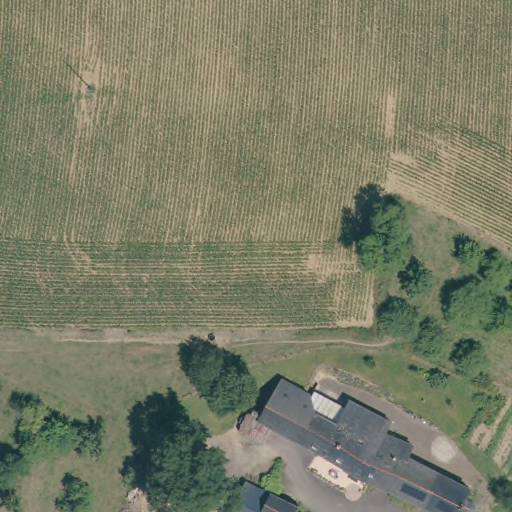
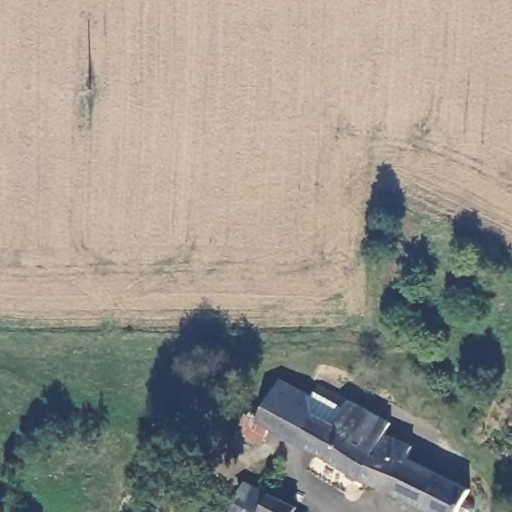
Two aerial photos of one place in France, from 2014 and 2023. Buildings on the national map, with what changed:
unchanged [(265,447),(241,434),(250,418),(262,425),(284,385),(312,400),(315,395),(346,412),(350,405),(385,423),(393,427),(387,440),(388,440),(415,451),(410,462),(410,463),(471,494),(466,504),(470,506),(471,506),(472,507),(473,507),(475,508),(475,509),(475,510),(475,511),(476,512),(428,512),(394,496),(362,482),(330,461),(273,432),(265,447)]
unchanged [(247,480),(276,497),(278,492),(303,507),(300,512),(267,512),(238,497),(247,480)]
unchanged [(238,497),(267,512),(232,512),(238,497)]

